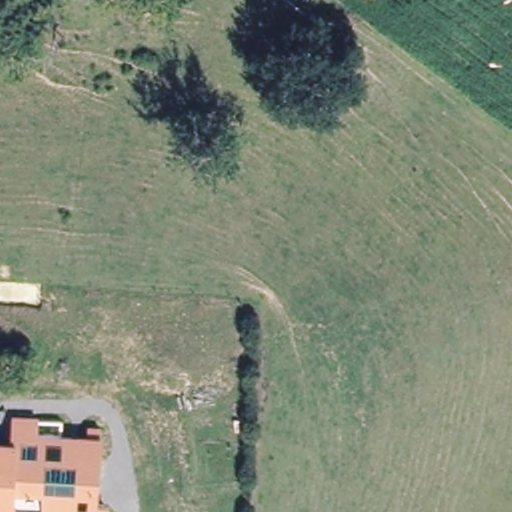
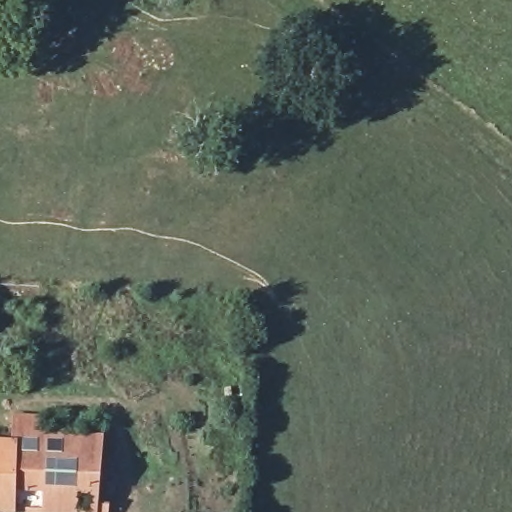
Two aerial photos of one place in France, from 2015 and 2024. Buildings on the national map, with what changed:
unchanged [(14,512),(16,445),(14,445),(14,420),(16,420),(17,413),(34,413),(34,420),(63,421),(63,439),(103,440),(96,508),(107,508),(106,512),(14,512)]
unchanged [(16,445),(14,512),(0,512),(0,444),(14,445),(16,445)]

